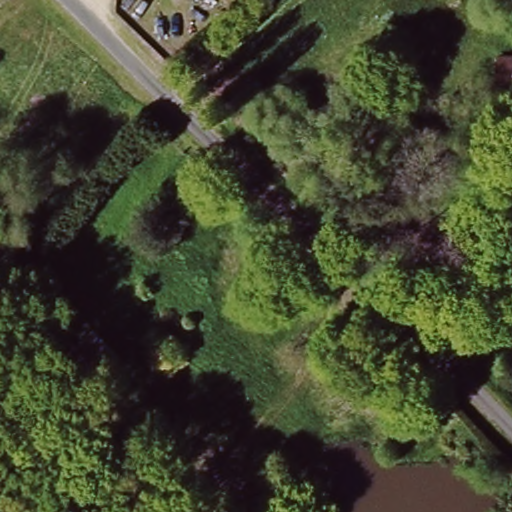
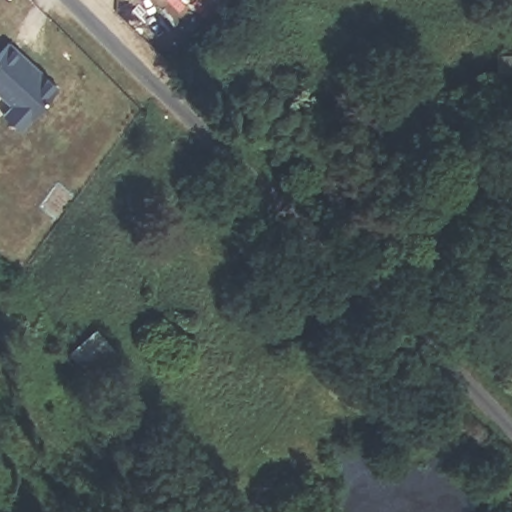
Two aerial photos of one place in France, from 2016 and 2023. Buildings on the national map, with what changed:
new [(59,87),(22,131),(5,117),(13,107),(0,95),(0,55),(9,45),(59,87)]
unchanged [(100,369),(87,381),(64,355),(76,343),(100,369)]

